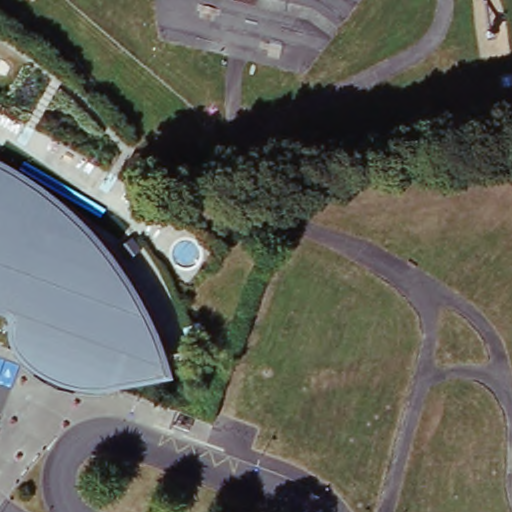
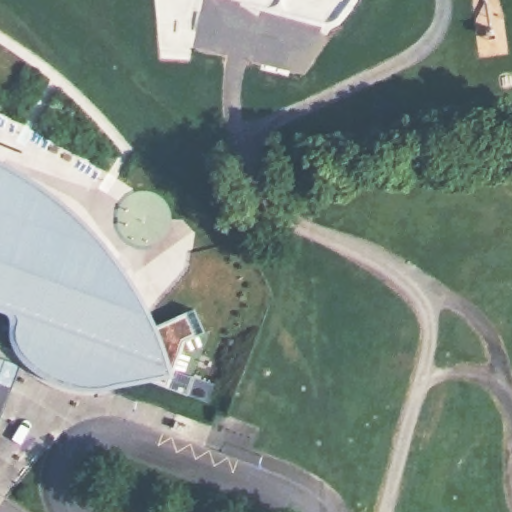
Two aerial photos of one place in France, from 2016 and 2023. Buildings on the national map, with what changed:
unchanged [(2,167),(31,184),(59,205),(76,220),(93,237),(100,246),(127,281),(142,308),(156,337),(165,366),(135,354),(133,365),(127,373),(119,379),(109,382),(95,385),(76,382),(50,372),(34,362),(27,355),(0,345),(0,166),(2,167)]

